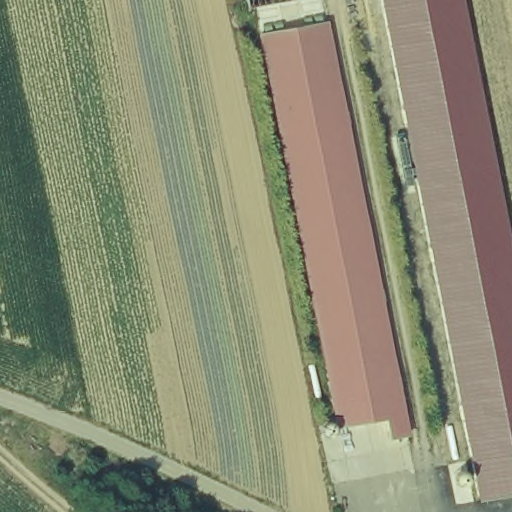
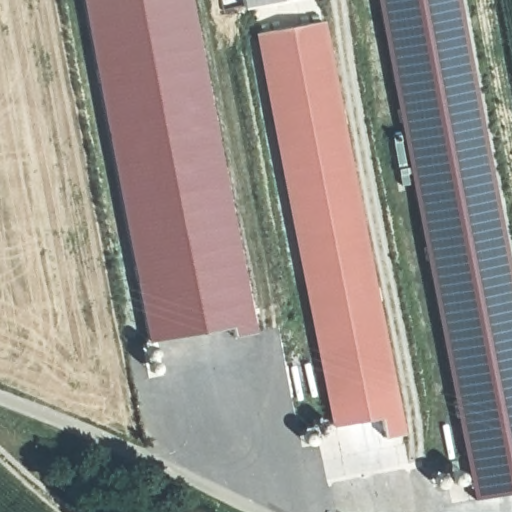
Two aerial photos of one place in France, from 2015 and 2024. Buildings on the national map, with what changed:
new [(241,256),(255,331),(233,335),(231,327),(147,340),(117,170),(83,0),(191,0),(241,256)]
unchanged [(245,7),(243,0),(279,0),(245,7)]
unchanged [(474,496),(380,0),(461,0),(512,272),(512,490),(474,496)]
unchanged [(402,432),(384,435),(380,415),(335,423),(261,34),(323,21),(402,432)]

